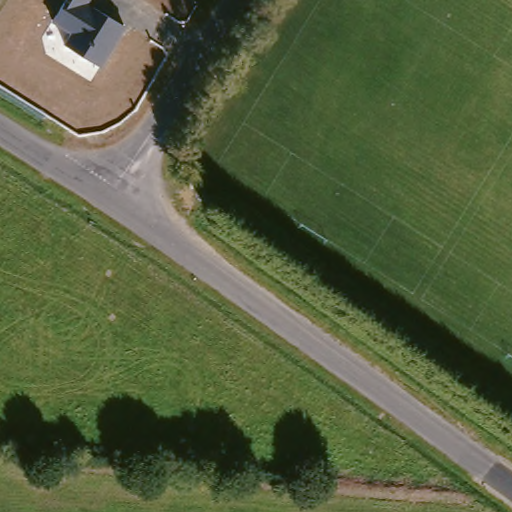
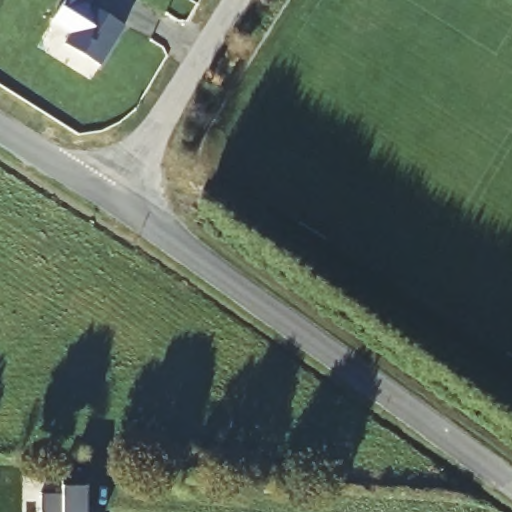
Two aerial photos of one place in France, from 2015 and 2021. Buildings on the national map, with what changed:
unchanged [(89,5),(125,27),(102,67),(64,44),(70,33),(51,20),(63,0),(92,0),(89,5)]
new [(66,474),(86,475),(85,489),(89,489),(88,512),(42,512),(43,495),(64,496),(66,474)]

